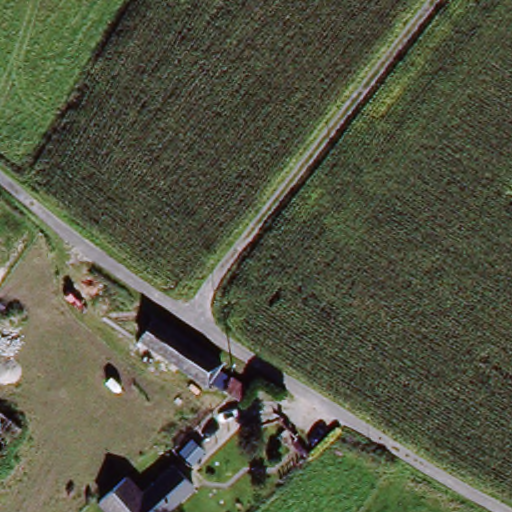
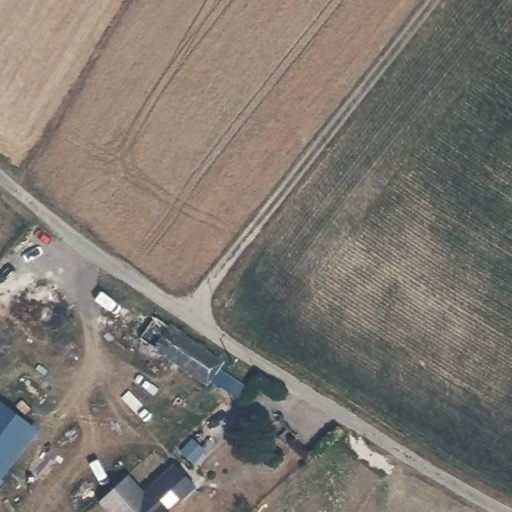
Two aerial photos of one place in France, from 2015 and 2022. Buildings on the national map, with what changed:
unchanged [(240,402),(208,378),(205,383),(140,331),(151,316),(154,311),(220,361),(216,366),(249,390),(240,402)]
new [(37,433),(0,482),(0,403),(37,433)]
demolished [(0,453),(0,419),(15,434),(0,453)]
unchanged [(143,495),(176,468),(195,489),(169,512),(105,512),(97,502),(128,477),(143,495)]

